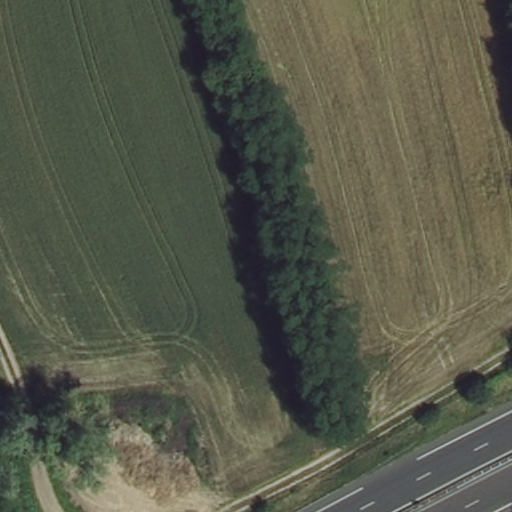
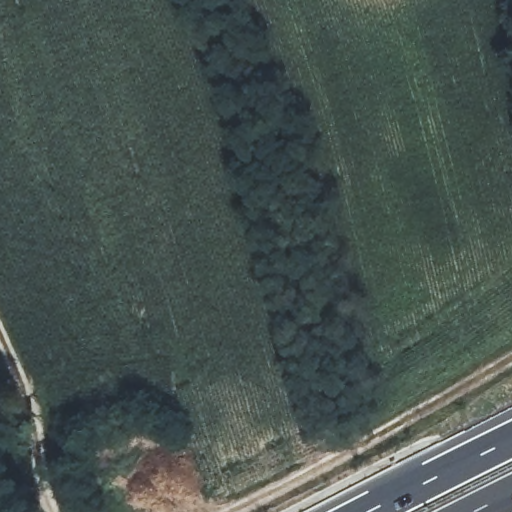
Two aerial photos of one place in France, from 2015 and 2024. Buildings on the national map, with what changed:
[]

